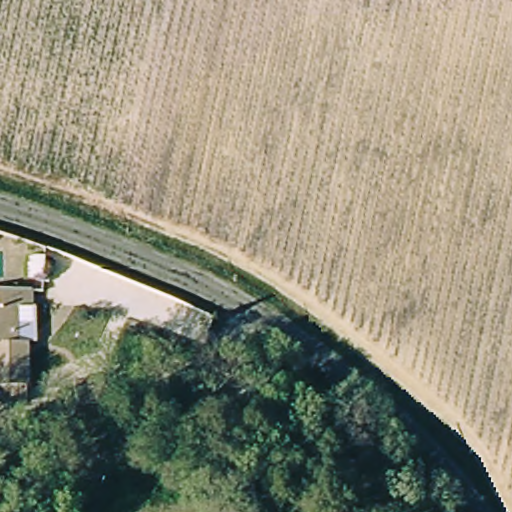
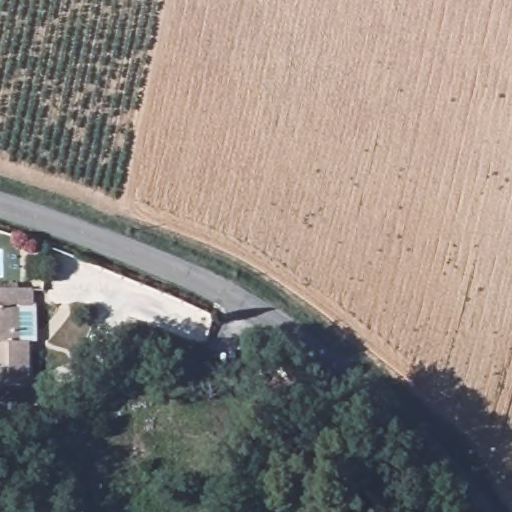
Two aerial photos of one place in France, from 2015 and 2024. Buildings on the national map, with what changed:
unchanged [(29,318),(29,351),(32,351),(35,351),(36,393),(21,393),(0,393),(0,300),(29,302),(29,318)]

